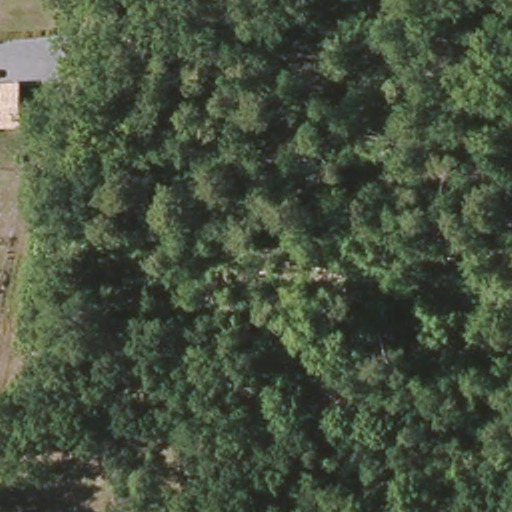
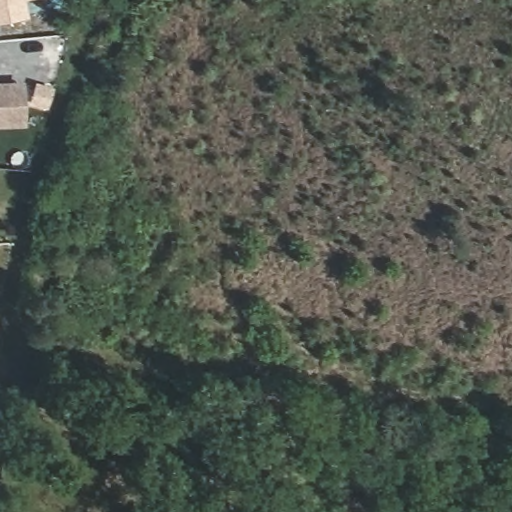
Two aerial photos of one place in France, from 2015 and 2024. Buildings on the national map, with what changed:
new [(0,22),(0,0),(24,0),(26,18),(0,22)]
unchanged [(0,127),(0,82),(23,81),(24,125),(0,127)]

